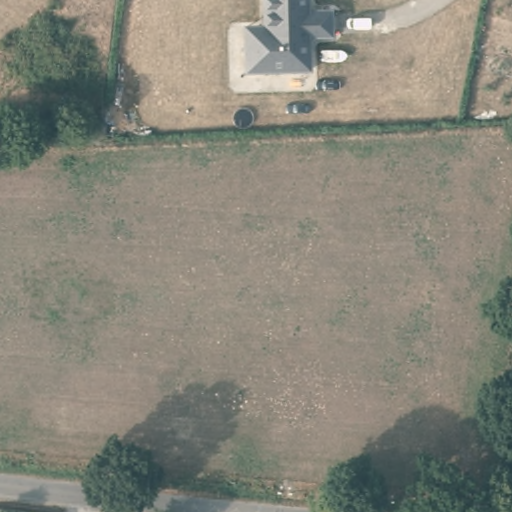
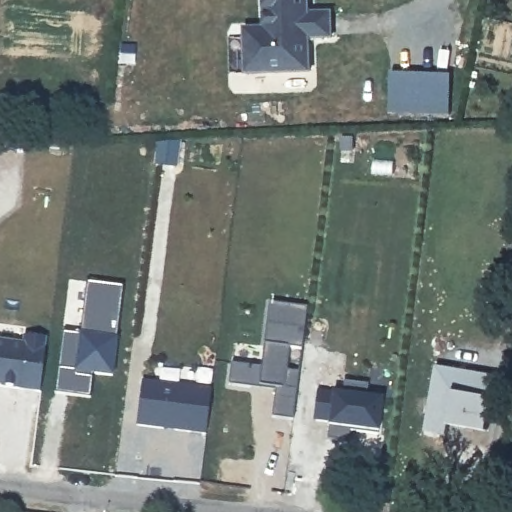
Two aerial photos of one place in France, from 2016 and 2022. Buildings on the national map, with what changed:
unchanged [(307,0),(307,13),(330,12),(331,37),(309,38),(311,71),(247,75),(245,40),(245,30),(265,29),(263,0),(307,0)]
unchanged [(450,115),(392,114),(392,74),(450,75),(450,115)]
new [(92,375),(89,397),(56,393),(64,334),(78,335),(78,333),(82,334),(88,283),(125,287),(114,376),(92,375)]
new [(273,418),(276,392),(229,386),(231,364),(260,367),(269,303),(309,308),(294,420),(273,418)]
unchanged [(19,389),(19,386),(0,383),(0,340),(23,343),(23,337),(46,338),(39,391),(19,389)]
new [(494,376),(492,398),(487,431),(450,424),(445,436),(424,432),(436,364),(494,376)]
new [(206,436),(136,426),(142,380),(212,389),(206,436)]
new [(378,434),(352,430),(348,442),(326,439),(330,427),(327,426),(328,423),(313,421),(314,390),(330,392),(342,394),(343,381),(368,384),(368,397),(382,399),(378,434)]

